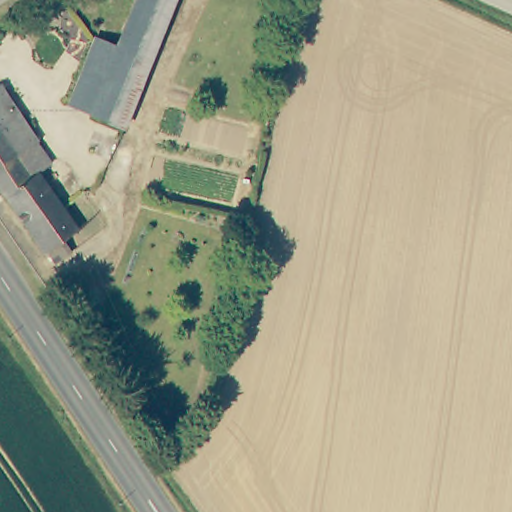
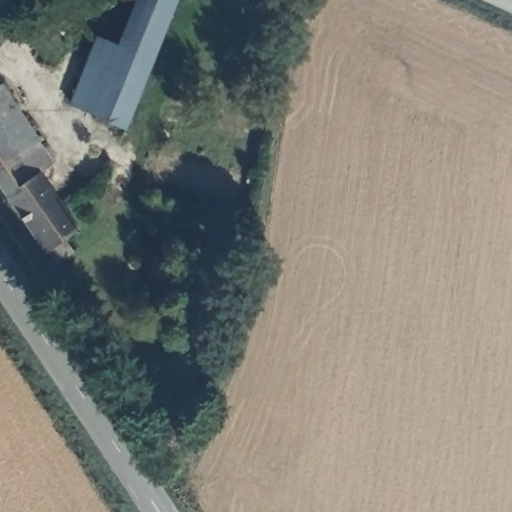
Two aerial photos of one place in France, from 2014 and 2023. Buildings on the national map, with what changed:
unchanged [(128,122),(92,109),(64,97),(88,30),(122,40),(137,0),(176,0),(130,117),(128,122)]
unchanged [(5,37),(0,39),(0,20),(2,20),(7,28),(5,37)]
unchanged [(0,81),(2,80),(22,110),(0,124),(0,81)]
unchanged [(55,157),(62,152),(86,187),(68,200),(83,225),(66,236),(75,249),(54,260),(45,250),(44,250),(0,185),(0,124),(22,110),(55,157)]

